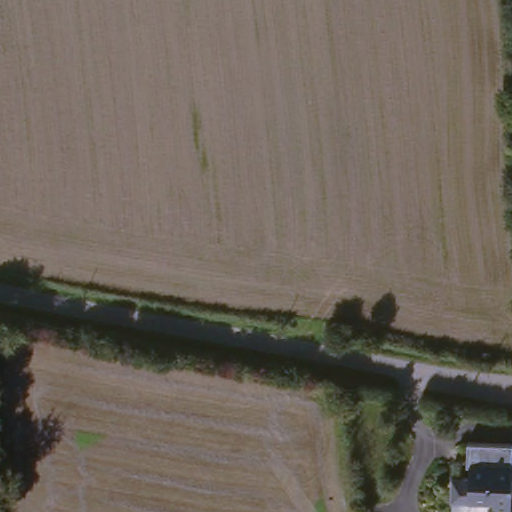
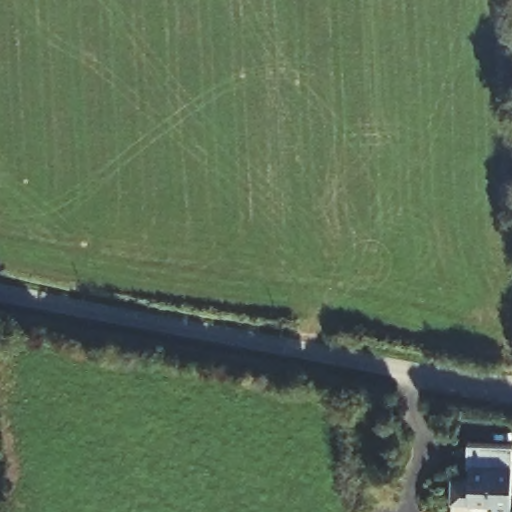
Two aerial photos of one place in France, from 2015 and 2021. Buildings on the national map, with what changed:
unchanged [(465,439),(508,441),(507,466),(463,465),(465,439)]
unchanged [(487,510),(487,502),(446,501),(446,477),(463,477),(463,465),(507,466),(505,510),(487,510)]

